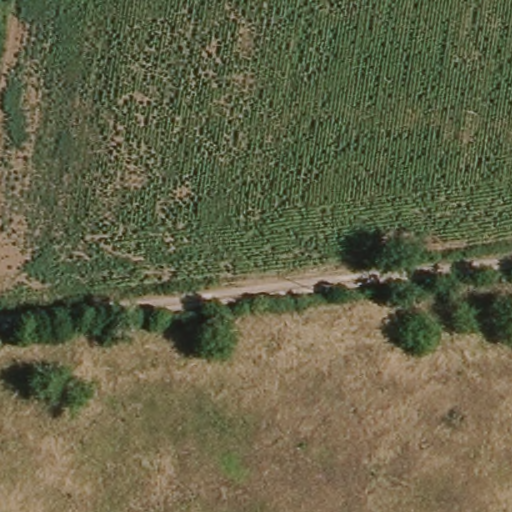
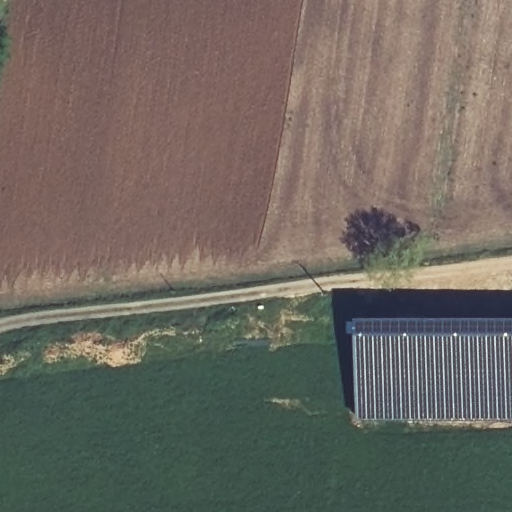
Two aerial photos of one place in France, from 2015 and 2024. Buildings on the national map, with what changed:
new [(512,317),(512,421),(357,421),(355,316),(512,317)]

